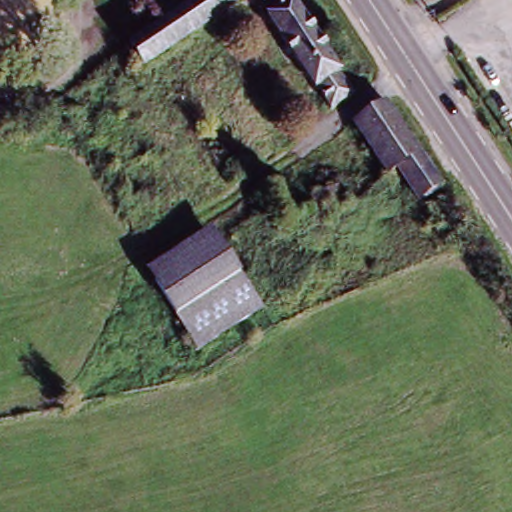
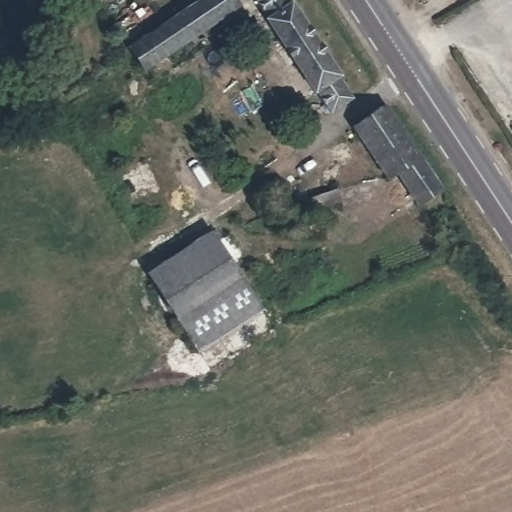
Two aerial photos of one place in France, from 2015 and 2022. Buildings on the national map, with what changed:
unchanged [(137,52),(134,47),(203,0),(246,0),(239,5),(240,7),(149,69),(147,67),(126,81),(116,65),(137,52)]
unchanged [(357,98),(334,112),(321,91),(320,92),(270,19),(272,18),(260,0),(292,0),(294,3),(297,1),(346,75),(343,76),(357,98)]
unchanged [(400,170),(391,176),(390,177),(359,127),(390,105),(446,188),(443,189),(423,204),(400,170)]
unchanged [(334,204),(331,205),(329,206),(325,195),(361,186),(364,196),(334,204)]
unchanged [(201,351),(151,275),(218,232),(266,311),(201,351)]

